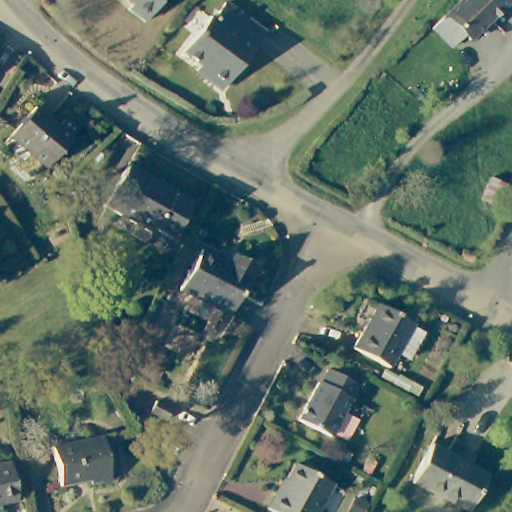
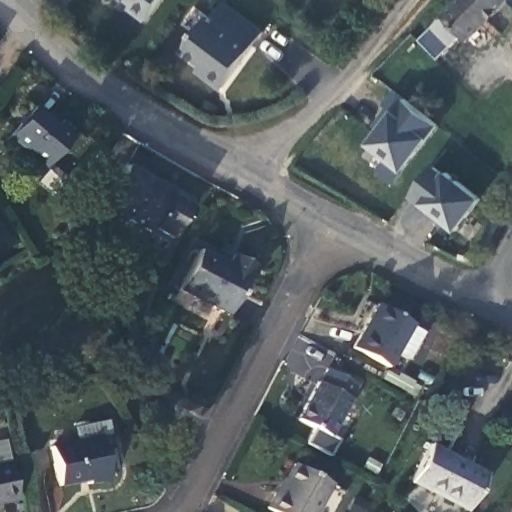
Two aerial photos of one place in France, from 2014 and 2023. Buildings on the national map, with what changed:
unchanged [(130,9),(132,5),(126,0),(164,0),(146,23),(130,9)]
unchanged [(501,0),(500,1),(506,8),(462,49),(438,25),(464,0),(501,0)]
unchanged [(220,93),(203,80),(206,76),(181,58),(206,23),(209,24),(220,9),(261,37),(220,93)]
new [(403,172),(396,181),(377,167),(386,159),(367,143),(393,109),(387,104),(397,89),(442,124),(403,172)]
unchanged [(22,114),(48,129),(52,123),(66,133),(42,173),(2,148),(22,114)]
new [(457,231),(422,204),(412,195),(437,161),(447,169),(486,199),(457,231)]
unchanged [(122,192),(114,186),(126,165),(155,182),(151,188),(167,196),(170,192),(187,203),(168,236),(152,227),(147,234),(111,212),(122,192)]
unchanged [(461,250),(475,254),(472,262),(458,258),(461,250)]
unchanged [(223,269),(227,261),(249,272),(244,279),(244,282),(225,320),(175,295),(195,255),(223,269)]
unchanged [(410,319),(411,322),(422,329),(406,356),(396,350),(388,364),(353,345),(377,301),(410,319)]
unchanged [(323,379),(330,367),(356,381),(348,396),(351,397),(332,433),(301,416),(320,379),(323,379)]
unchanged [(167,411),(160,421),(146,411),(153,401),(167,411)]
unchanged [(99,439),(109,481),(91,486),(90,480),(60,487),(52,449),(99,439)]
unchanged [(423,453),(481,482),(465,512),(455,512),(406,488),(423,453)]
unchanged [(277,497),(293,464),(329,484),(314,512),(269,512),(266,511),(274,496),(277,497)]
unchanged [(12,471),(20,505),(0,509),(0,473),(12,471)]

